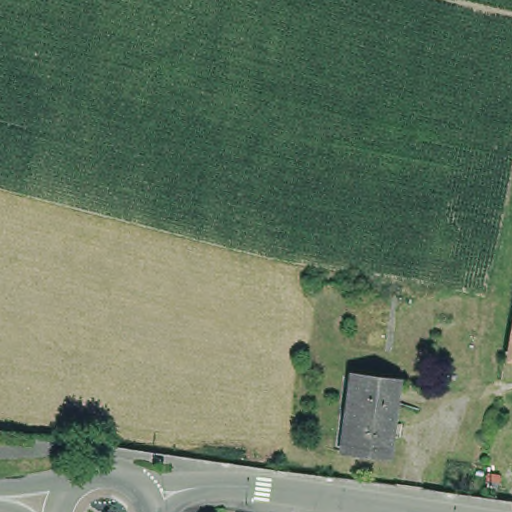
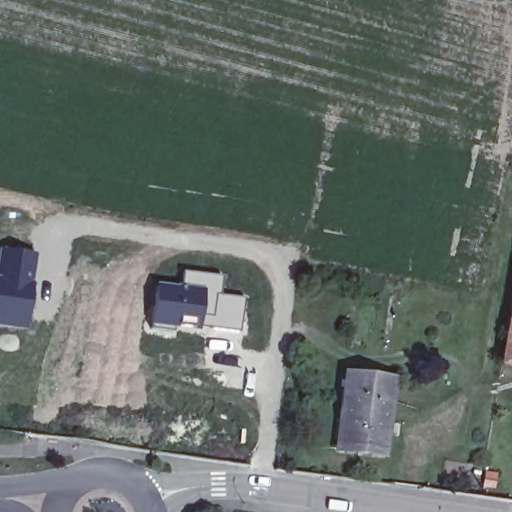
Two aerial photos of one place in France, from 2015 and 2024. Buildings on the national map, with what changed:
new [(23,329),(0,326),(0,248),(36,254),(23,329)]
new [(221,275),(218,293),(243,297),(239,334),(153,324),(158,281),(180,284),(181,270),(221,275)]
unchanged [(512,293),(512,328),(506,326),(512,293)]
unchanged [(512,328),(512,363),(500,361),(506,326),(512,328)]
unchanged [(341,416),(349,416),(353,377),(397,382),(392,425),(407,424),(404,439),(391,435),(388,456),(344,451),(337,450),(341,416)]

